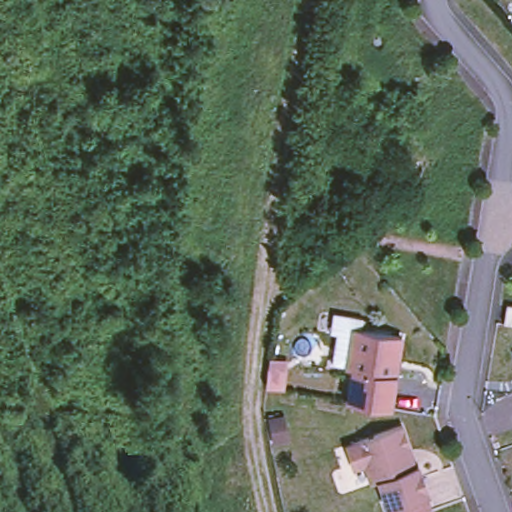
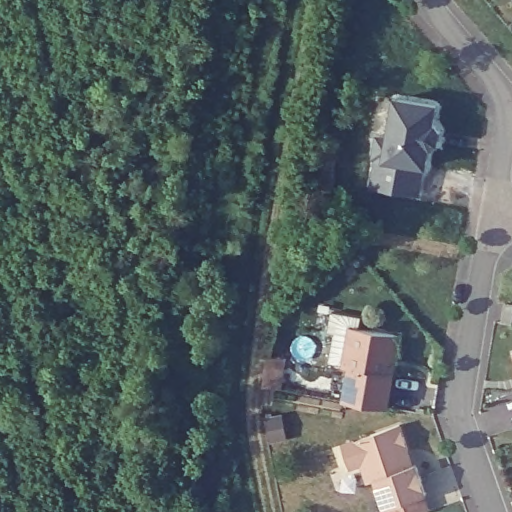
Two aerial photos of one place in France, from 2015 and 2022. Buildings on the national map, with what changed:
new [(380,158),(377,158),(380,137),(392,139),(398,99),(439,105),(436,125),(438,125),(442,130),(440,143),(435,147),(432,146),(429,166),(427,165),(422,194),(375,186),(380,158)]
unchanged [(507,303),(512,304),(512,324),(505,323),(507,303)]
unchanged [(349,397),(354,366),(347,365),(354,326),(401,334),(398,351),(393,353),(392,364),(395,366),(390,404),(349,397)]
unchanged [(432,507),(416,512),(390,512),(388,508),(378,478),(370,481),(365,463),(350,468),(329,474),(322,451),(342,444),(402,424),(411,449),(406,451),(412,466),(418,463),(428,494),(427,494),(431,507),(432,507)]

